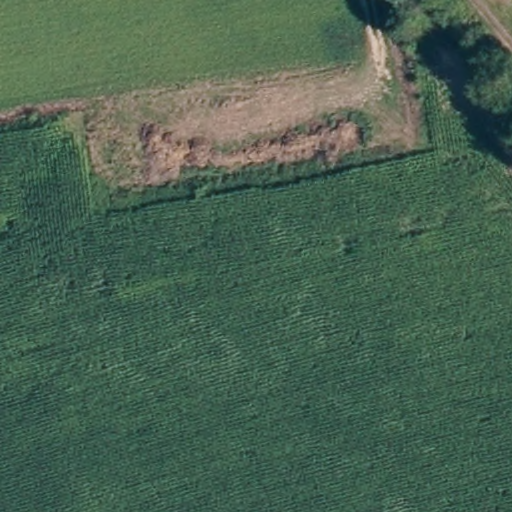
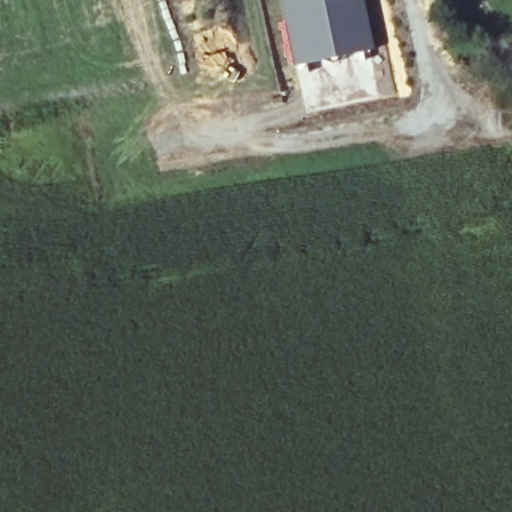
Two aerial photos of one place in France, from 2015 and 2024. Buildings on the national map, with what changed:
new [(295,66),(281,0),(365,0),(376,47),(295,66)]

